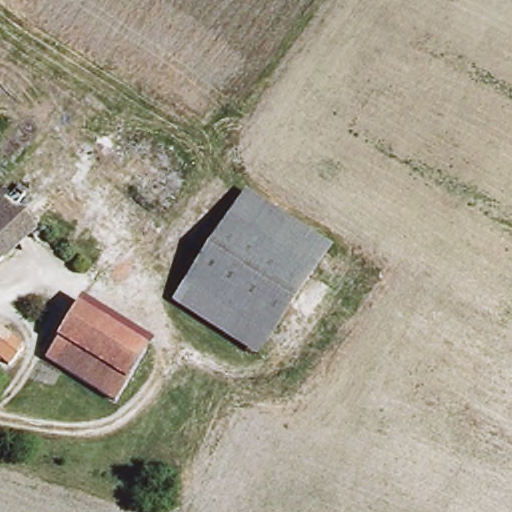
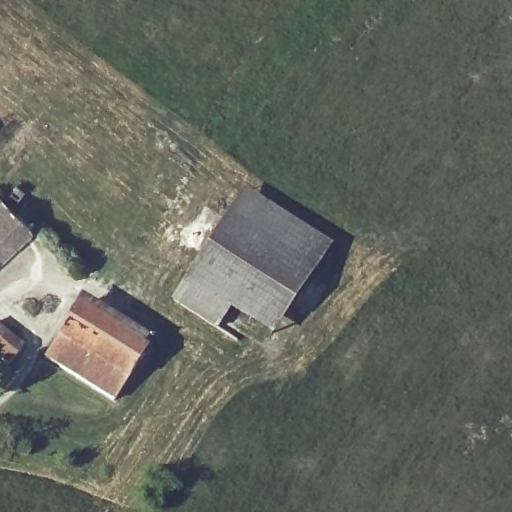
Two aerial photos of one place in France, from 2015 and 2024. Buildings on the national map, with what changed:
unchanged [(246,192),(328,239),(263,354),(181,307),(246,192)]
unchanged [(6,207),(24,197),(40,220),(0,257),(0,198),(6,207)]
unchanged [(50,351),(74,309),(145,351),(121,390),(50,351)]
unchanged [(21,352),(8,367),(0,360),(0,334),(21,352)]

